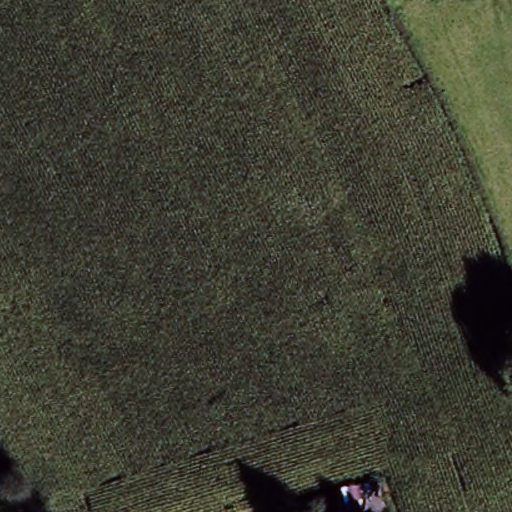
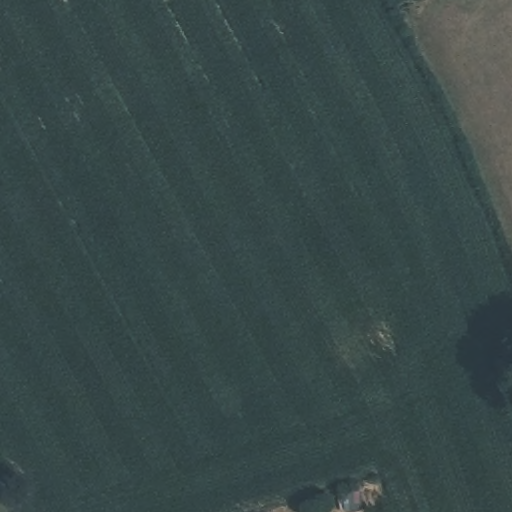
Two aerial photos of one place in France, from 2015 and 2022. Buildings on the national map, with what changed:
unchanged [(341,512),(335,494),(376,479),(384,505),(362,512),(341,512)]

